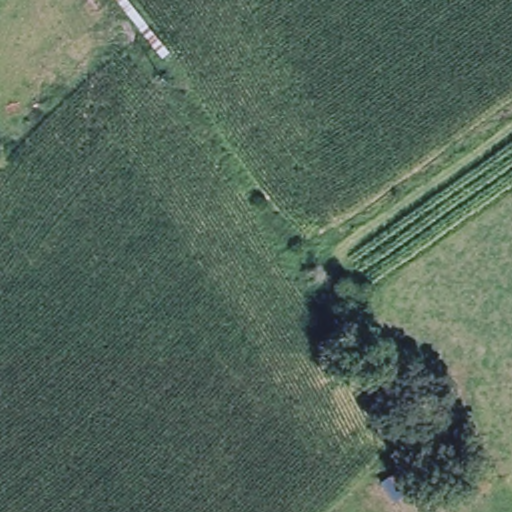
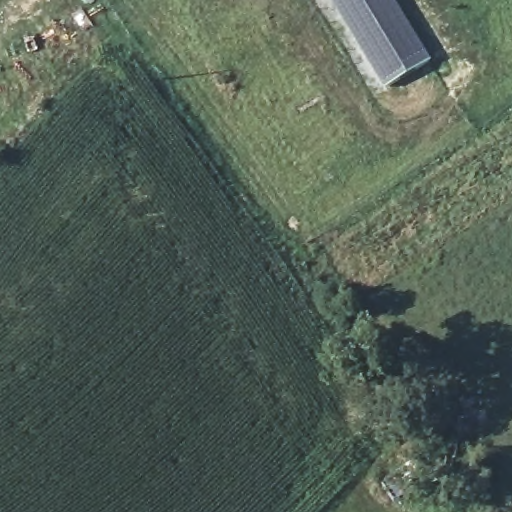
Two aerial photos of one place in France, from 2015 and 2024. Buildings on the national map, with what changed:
new [(385,89),(330,0),(397,0),(433,59),(385,89)]

